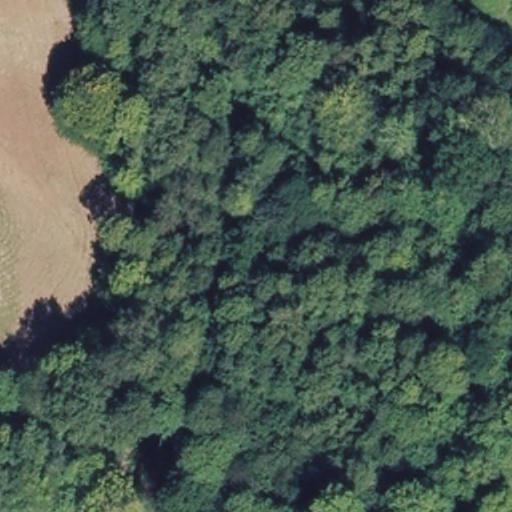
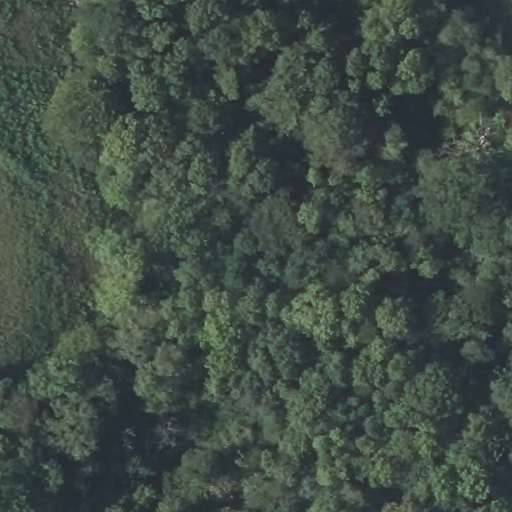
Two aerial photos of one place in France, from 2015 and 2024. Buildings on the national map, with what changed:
[]

